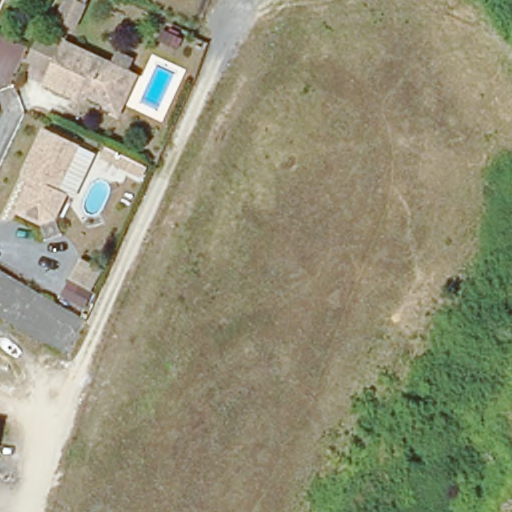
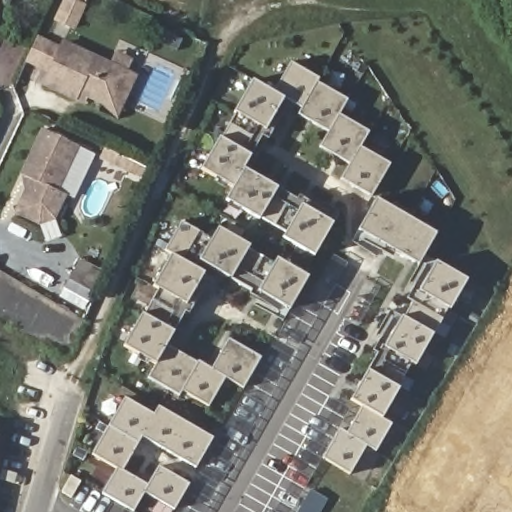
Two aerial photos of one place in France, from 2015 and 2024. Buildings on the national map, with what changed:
unchanged [(91,3),(80,26),(53,13),(59,0),(85,0),(91,3)]
unchanged [(177,50),(159,41),(164,30),(182,39),(177,50)]
unchanged [(115,115),(101,102),(85,95),(77,91),(74,98),(42,83),(47,73),(24,62),(31,46),(36,36),(59,47),(62,42),(129,73),(134,75),(115,115)]
new [(318,83),(303,109),(285,98),(275,92),(291,62),(321,78),(318,83)]
new [(252,79),(275,92),(285,98),(267,130),(234,111),(252,79)]
new [(329,131),(300,115),(303,109),(318,83),(348,99),(339,114),(329,131)]
new [(219,136),(234,111),(267,130),(252,156),(219,136)]
new [(352,165),(321,146),(329,131),(339,114),(370,132),(362,147),(352,165)]
unchanged [(39,226),(16,215),(31,182),(21,177),(42,132),(77,148),(95,156),(74,201),(65,197),(54,221),(39,226)]
new [(201,168),(219,136),(252,156),(245,169),(235,187),(201,168)]
new [(372,197),(342,180),(352,165),(362,147),(392,164),(372,197)]
new [(277,187),(261,218),(260,219),(227,200),(235,187),(245,169),(277,187)]
new [(261,218),(277,187),(304,202),(302,205),(286,232),(261,218)]
new [(418,266),(358,231),(377,198),(437,233),(418,266)]
new [(316,255),(283,237),(286,232),(302,205),(334,223),(316,255)]
new [(212,239),(200,260),(209,265),(205,273),(172,254),(166,250),(182,222),(212,239)]
new [(258,292),(234,277),(232,279),(209,265),(200,260),(212,239),(218,228),(251,247),(247,251),(273,265),(277,258),(309,277),(290,310),(258,292)]
new [(205,273),(187,305),(160,289),(155,286),(172,254),(205,273)]
new [(451,309),(448,308),(419,291),(436,261),(468,279),(451,309)]
unchanged [(57,295),(67,276),(91,289),(79,308),(57,295)]
new [(190,306),(175,333),(145,315),(160,289),(187,305),(190,306)]
new [(434,334),(404,317),(419,291),(448,308),(434,334)]
new [(145,315),(175,333),(167,346),(157,364),(124,346),(142,314),(145,315)]
new [(340,429),(348,434),(363,409),(350,400),(367,369),(372,372),(386,347),(403,316),(404,317),(434,334),(416,365),(412,363),(398,388),(400,388),(382,419),(392,424),(377,451),(367,445),(351,474),(324,458),(340,429)]
new [(244,388),(225,377),(212,370),(229,339),(262,357),(244,388)]
new [(180,396),(149,378),(157,364),(167,346),(197,363),(182,390),(180,396)]
new [(210,406),(182,390),(197,363),(199,362),(212,370),(225,377),(210,406)]
new [(197,469),(142,437),(124,470),(148,485),(159,467),(191,485),(175,510),(146,493),(134,512),(102,493),(117,469),(92,454),(125,398),(154,414),(159,406),(214,439),(197,469)]

